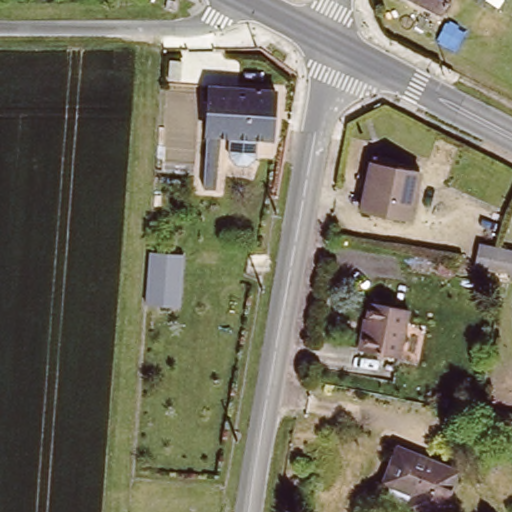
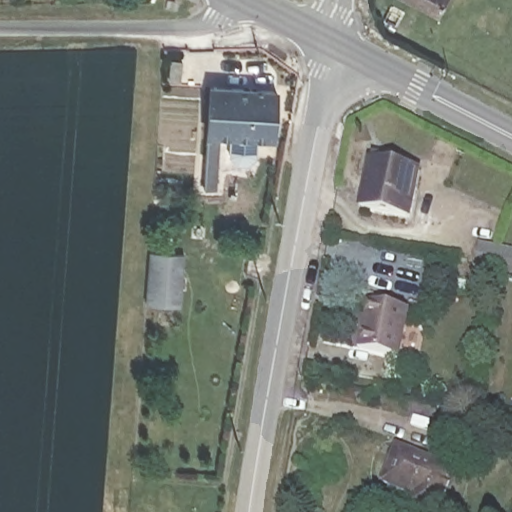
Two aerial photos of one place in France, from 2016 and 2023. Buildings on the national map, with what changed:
unchanged [(437,22),(394,0),(448,0),(437,22)]
unchanged [(216,195),(202,195),(211,90),(276,95),(273,141),(221,139),(216,195)]
unchanged [(423,175),(417,223),(366,217),(371,168),(423,175)]
unchanged [(481,266),(485,247),(504,251),(512,252),(512,272),(499,269),(481,266)]
unchanged [(149,251),(184,253),(181,303),(146,301),(149,251)]
unchanged [(413,318),(408,360),(366,355),(368,335),(375,336),(378,314),(413,318)]
unchanged [(385,478),(399,445),(457,471),(440,512),(433,512),(412,503),(388,492),(392,481),(385,478)]

